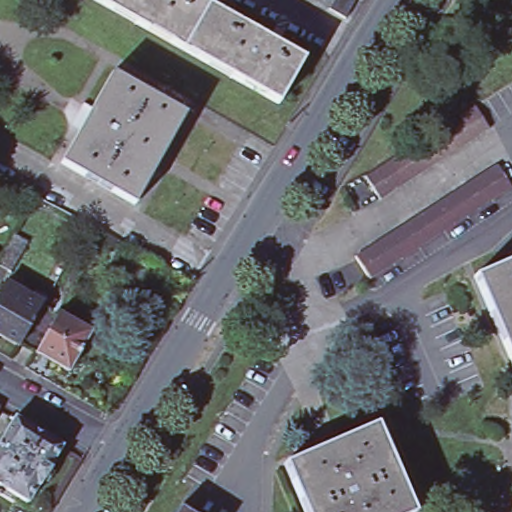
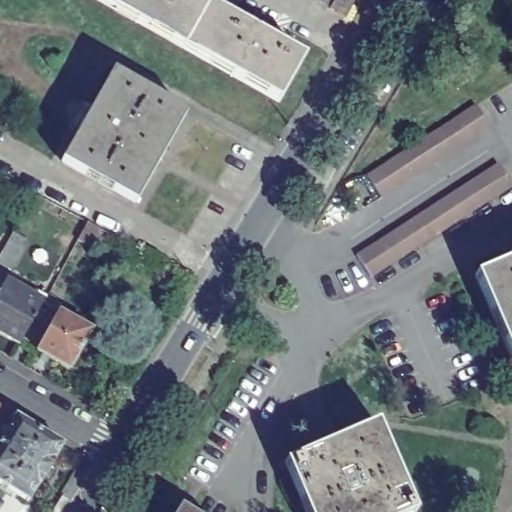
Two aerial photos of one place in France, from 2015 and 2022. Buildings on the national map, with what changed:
unchanged [(93,0),(192,0),(302,62),(278,105),(93,0)]
unchanged [(346,19),(330,10),(330,9),(320,2),(315,0),(356,0),(346,19)]
unchanged [(112,76),(184,117),(133,205),(62,165),(112,76)]
unchanged [(385,167),(395,161),(407,153),(418,146),(429,139),(440,132),(451,125),(462,117),(474,110),(487,131),(477,137),(465,145),(453,152),(443,160),(432,166),(420,174),(408,181),(398,189),(387,195),(376,202),(364,181),(375,174),(385,167)]
unchanged [(374,247),(386,239),(397,232),(406,226),(417,219),(428,212),(440,205),(451,197),(461,190),(472,184),(482,177),(495,169),(510,191),(497,199),(488,205),(476,212),(466,220),(455,226),(443,235),(432,241),(421,249),(411,255),(400,262),(388,270),(377,277),(367,283),(352,261),(363,254),(374,247)]
unchanged [(88,225),(101,232),(90,251),(78,244),(88,225)]
unchanged [(13,237),(27,245),(11,273),(0,267),(0,260),(13,237)]
unchanged [(512,263),(512,354),(480,276),(512,263)]
unchanged [(37,355),(21,345),(20,347),(0,336),(0,299),(7,285),(25,295),(35,280),(52,290),(43,306),(60,315),(91,334),(70,372),(37,355)]
unchanged [(15,420),(15,419),(63,447),(53,463),(53,465),(42,484),(40,484),(29,503),(0,486),(0,445),(15,420)]
unchanged [(412,512),(306,512),(286,465),(377,427),(412,512)]
unchanged [(194,512),(180,512),(184,505),(194,512)]

